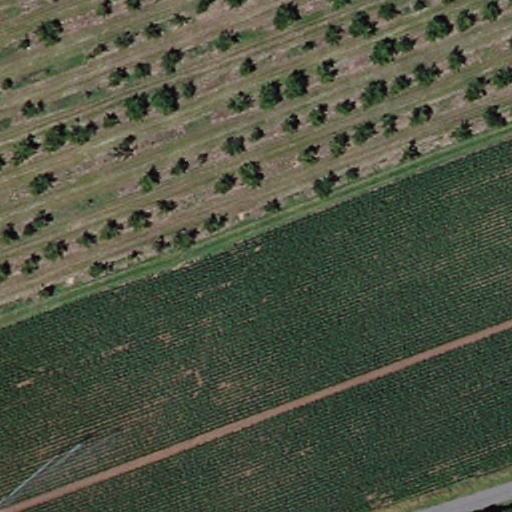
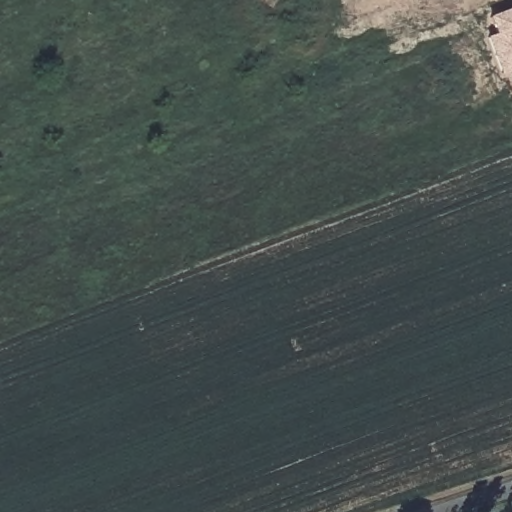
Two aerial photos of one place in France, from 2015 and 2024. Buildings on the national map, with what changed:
new [(495,33),(489,16),(512,7),(512,78),(510,73),(502,75),(486,37),(495,33)]

